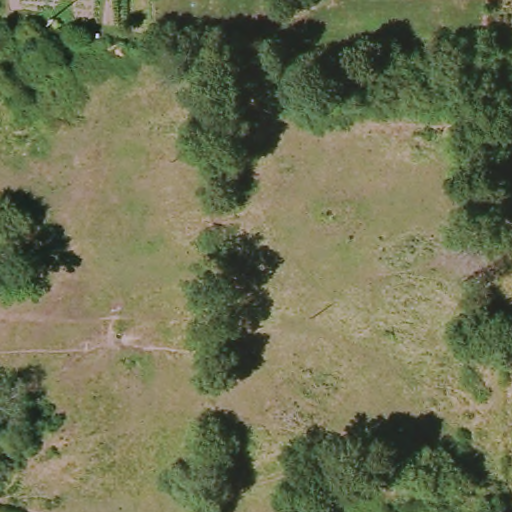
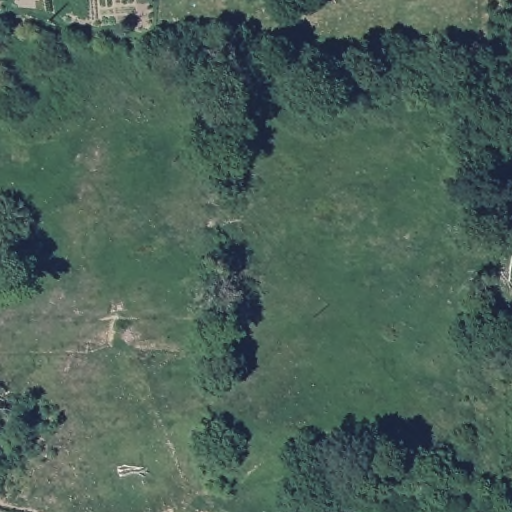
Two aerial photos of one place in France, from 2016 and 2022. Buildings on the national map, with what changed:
unchanged [(349,512),(321,512),(325,485),(352,488),(349,512)]

